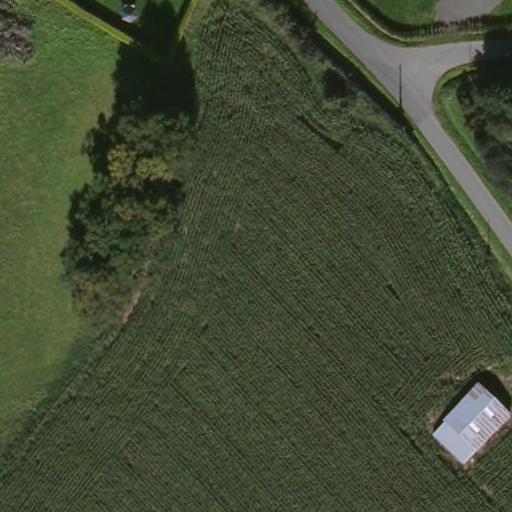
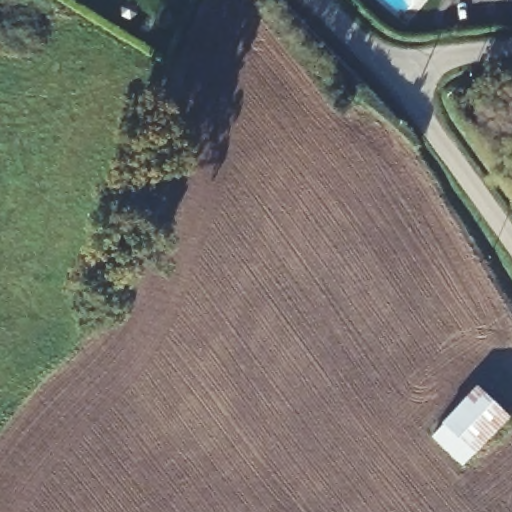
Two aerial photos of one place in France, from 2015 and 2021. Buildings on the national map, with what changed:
unchanged [(430,427),(441,417),(477,382),(507,410),(471,445),(460,455),(430,427)]

